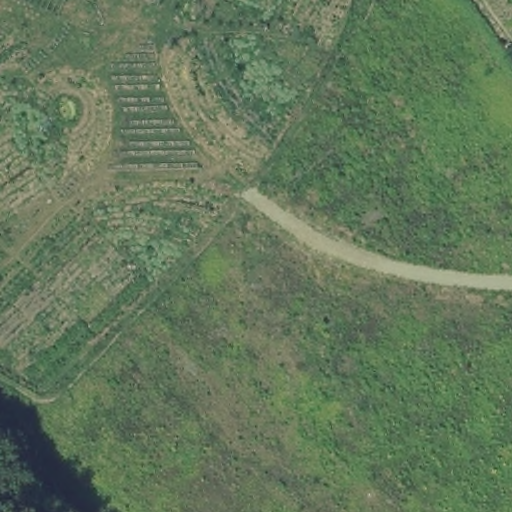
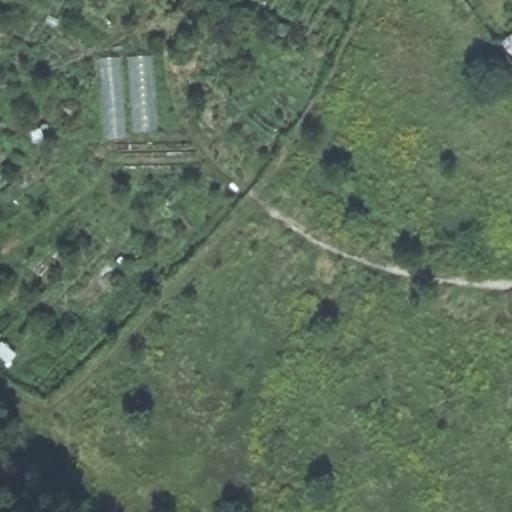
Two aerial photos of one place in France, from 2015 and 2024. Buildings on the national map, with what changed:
new [(150,54),(155,133),(105,137),(99,58),(150,54)]

